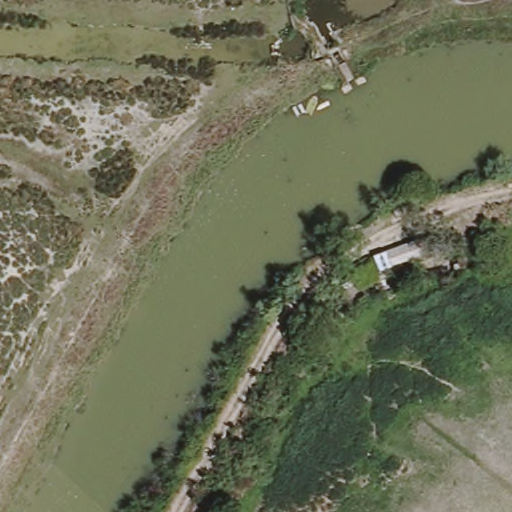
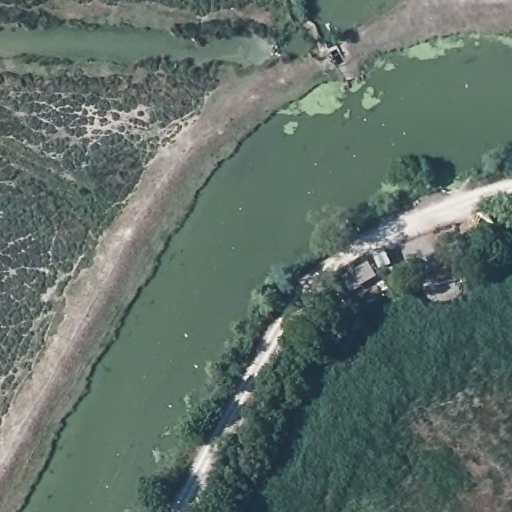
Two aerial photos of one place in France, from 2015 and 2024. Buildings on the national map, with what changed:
unchanged [(390,286),(375,259),(431,232),(445,260),(390,286)]

